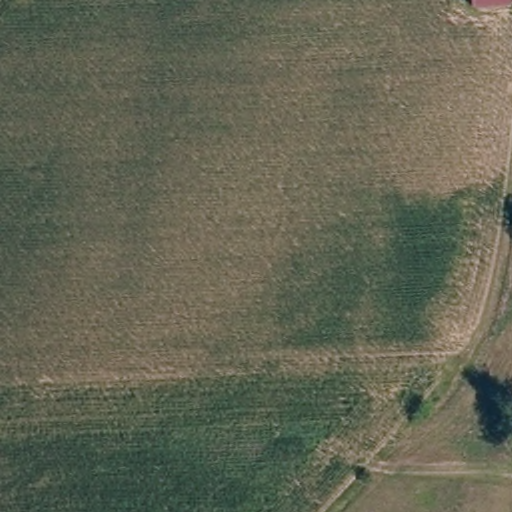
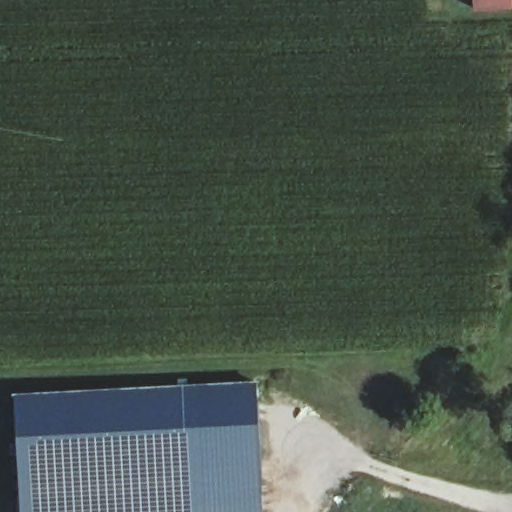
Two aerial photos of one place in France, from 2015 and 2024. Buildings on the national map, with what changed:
unchanged [(509,0),(509,14),(473,15),(473,0),(509,0)]
new [(199,385),(200,383),(256,380),(263,512),(205,512),(199,385)]
new [(15,393),(199,385),(205,512),(22,512),(15,393)]

